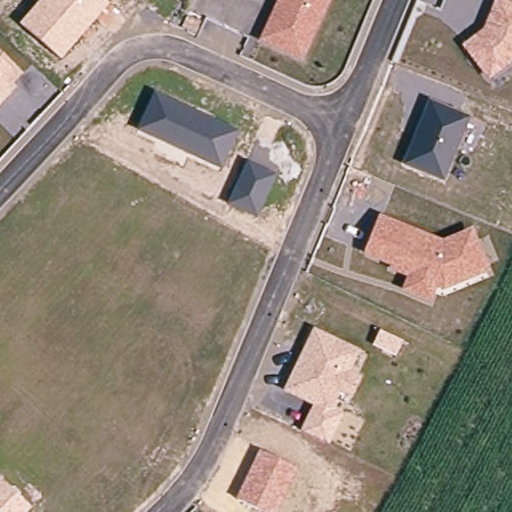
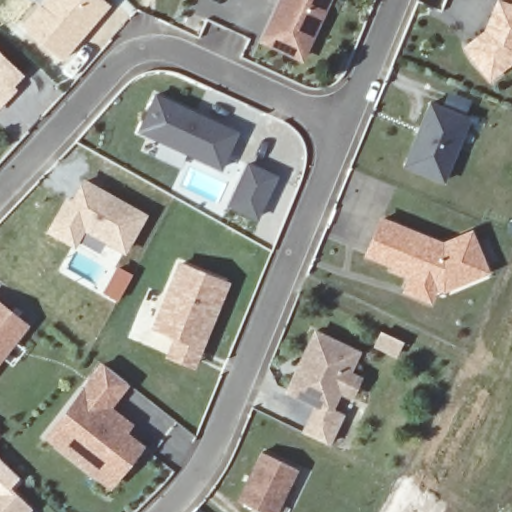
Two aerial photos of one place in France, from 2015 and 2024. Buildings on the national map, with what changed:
unchanged [(104,0),(109,4),(62,60),(20,25),(41,0),(104,0)]
unchanged [(331,0),(305,62),(258,42),(276,0),(331,0)]
unchanged [(484,30),(494,0),(504,0),(511,2),(511,0),(512,0),(512,63),(489,80),(462,45),(484,30)]
unchanged [(23,74),(13,84),(17,88),(0,105),(0,52),(23,74)]
unchanged [(155,92),(238,129),(221,169),(137,131),(155,92)]
unchanged [(425,99),(471,117),(446,182),(401,165),(425,99)]
unchanged [(246,162),(277,175),(259,219),(227,206),(246,162)]
new [(84,232),(74,247),(46,231),(66,195),(72,197),(83,178),(147,214),(125,253),(84,232)]
unchanged [(441,240),(472,229),(490,273),(444,292),(438,290),(432,302),(401,291),(405,278),(387,271),(389,266),(362,255),(378,214),(441,240)]
new [(165,357),(172,337),(150,327),(178,261),(230,282),(195,368),(165,357)]
new [(26,324),(0,357),(0,304),(26,324)]
unchanged [(312,328),(359,350),(350,372),(361,377),(351,398),(339,393),(332,407),(343,413),(329,443),(302,431),(313,406),(283,392),(312,328)]
new [(45,437),(102,362),(128,385),(112,407),(133,423),(128,432),(144,445),(108,487),(45,437)]
unchanged [(259,450),(298,467),(277,512),(264,512),(236,499),(259,450)]
unchanged [(32,507),(28,512),(0,512),(0,478),(32,507)]

